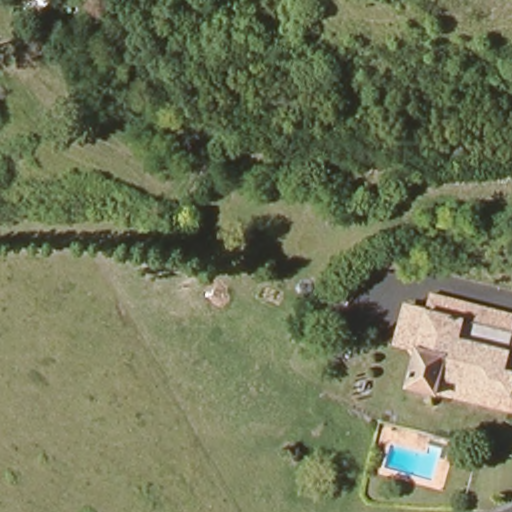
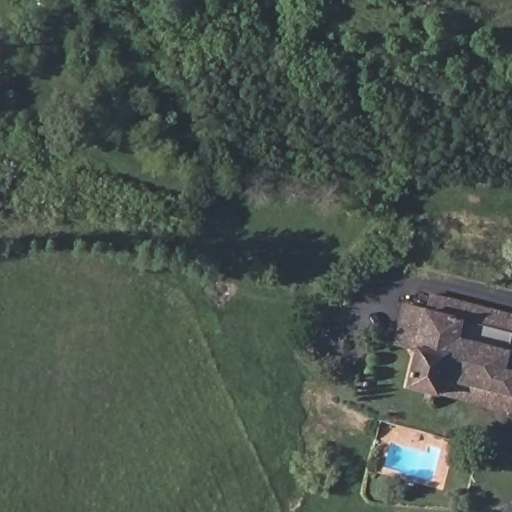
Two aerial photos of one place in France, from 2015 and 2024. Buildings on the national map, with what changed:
unchanged [(433,397),(409,391),(418,355),(397,349),(406,311),(427,315),(443,319),(448,321),(452,304),(487,313),(512,319),(512,336),(512,415),(433,397)]

